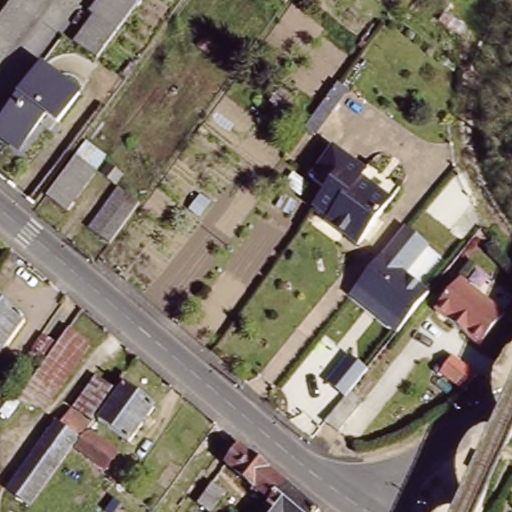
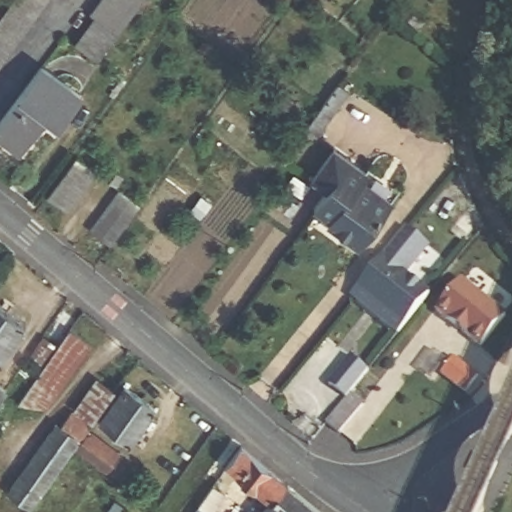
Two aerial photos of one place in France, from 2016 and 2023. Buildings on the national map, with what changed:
unchanged [(13,0),(48,0),(0,65),(0,18),(13,0)]
unchanged [(104,55),(81,39),(101,11),(97,8),(103,0),(145,0),(104,55)]
unchanged [(279,2),(275,0),(281,0),(279,2)]
unchanged [(46,62),(83,90),(62,119),(50,110),(23,145),(0,127),(0,124),(46,62)]
unchanged [(312,210),(321,195),(306,181),(331,144),(364,172),(361,180),(389,201),(357,247),(312,210)]
unchanged [(101,166),(71,206),(52,191),(82,152),(101,166)]
unchanged [(144,200),(115,238),(95,224),(125,185),(143,199),(144,200)]
unchanged [(427,245),(407,271),(430,289),(403,325),(385,310),(377,318),(350,295),(404,227),(427,245)]
unchanged [(433,311),(458,279),(501,311),(471,343),(433,311)]
unchanged [(30,316),(4,352),(0,350),(0,295),(30,316)]
unchanged [(76,318),(90,327),(83,337),(90,342),(45,408),(18,402),(35,379),(76,318)]
unchanged [(463,386),(440,367),(453,350),(461,340),(466,344),(465,345),(480,358),(473,366),(477,370),(463,386)]
unchanged [(11,383),(0,400),(0,375),(11,383)]
unchanged [(103,377),(120,389),(99,418),(83,407),(103,377)]
unchanged [(129,386),(160,409),(136,441),(106,419),(129,386)]
unchanged [(350,391),(363,401),(340,433),(326,423),(350,391)]
unchanged [(78,448),(37,506),(15,490),(62,422),(67,425),(78,410),(96,423),(78,448)]
unchanged [(104,421),(96,431),(126,452),(112,472),(78,448),(96,423),(99,418),(104,421)]
unchanged [(270,495),(226,460),(241,440),(285,476),(270,495)]
unchanged [(318,504),(312,512),(257,512),(270,495),(285,476),(286,477),(318,504)]
unchanged [(225,492),(211,512),(210,512),(198,503),(213,483),(225,492)]

